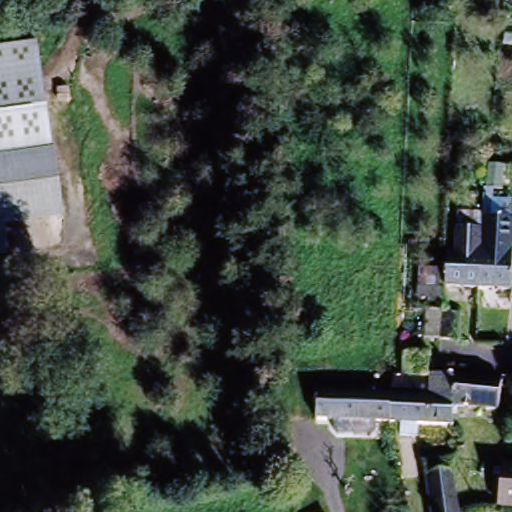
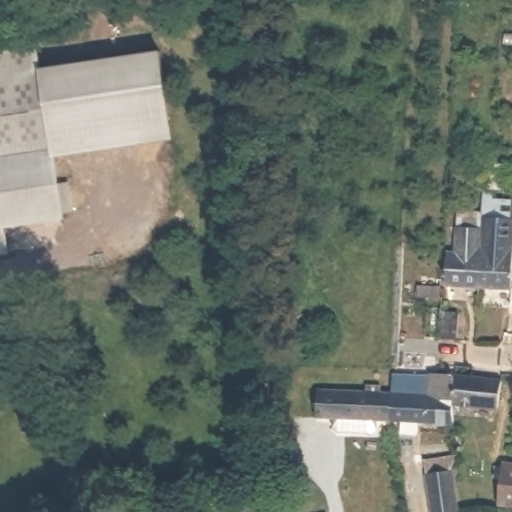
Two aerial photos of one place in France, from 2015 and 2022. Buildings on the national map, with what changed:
unchanged [(57,146),(0,154),(0,48),(40,42),(57,146)]
new [(162,50),(175,140),(60,156),(58,146),(57,146),(44,68),(162,50)]
unchanged [(69,215),(12,223),(16,249),(0,252),(0,155),(58,146),(69,215)]
unchanged [(478,289),(445,287),(446,252),(447,227),(461,228),(482,229),(482,242),(478,289)]
unchanged [(502,291),(478,289),(482,242),(502,243),(512,244),(512,268),(510,291),(502,291)]
unchanged [(452,308),(467,309),(465,336),(453,336),(452,336),(450,335),(449,335),(450,330),(450,317),(451,308),(452,308)]
unchanged [(476,416),(477,429),(461,429),(461,416),(452,416),(453,392),(452,371),(475,374),(475,380),(504,381),(512,382),(512,402),(502,401),(501,416),(476,416)]
unchanged [(421,434),(415,428),(416,416),(316,416),(318,388),(453,392),(452,416),(441,416),(441,429),(436,433),(421,434)]
unchanged [(502,501),(505,462),(512,463),(512,502),(502,501)]
unchanged [(436,477),(470,477),(470,484),(470,494),(470,512),(435,512),(436,493),(436,477)]

